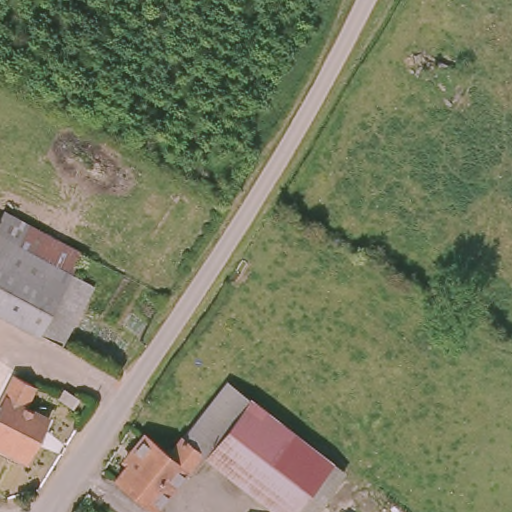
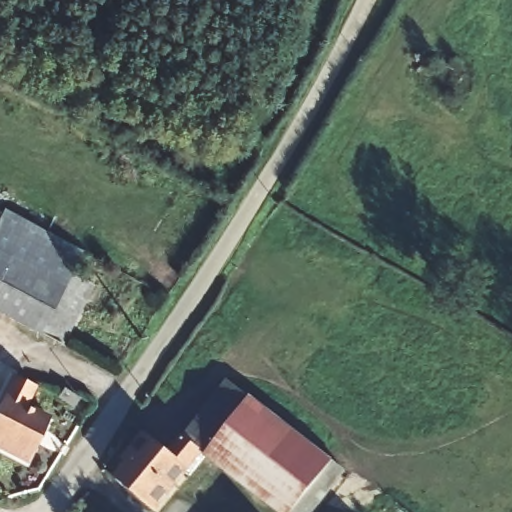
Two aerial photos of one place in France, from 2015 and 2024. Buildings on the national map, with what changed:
unchanged [(0,216),(2,210),(80,249),(70,271),(0,237),(0,216)]
unchanged [(0,237),(70,271),(40,331),(0,311),(0,237)]
unchanged [(92,282),(64,343),(40,331),(70,271),(92,282)]
unchanged [(0,446),(0,407),(16,377),(35,387),(24,405),(50,419),(25,461),(0,446)]
unchanged [(245,400),(258,383),(298,415),(285,431),(245,400)]
unchanged [(206,427),(202,424),(213,409),(230,387),(245,400),(285,431),(340,473),(309,512),(275,512),(203,456),(191,446),(206,427)]
unchanged [(75,408),(60,397),(65,390),(80,400),(75,408)]
unchanged [(121,460),(141,435),(166,454),(167,452),(179,437),(191,446),(203,456),(186,477),(180,472),(150,511),(112,480),(126,463),(121,460)]

